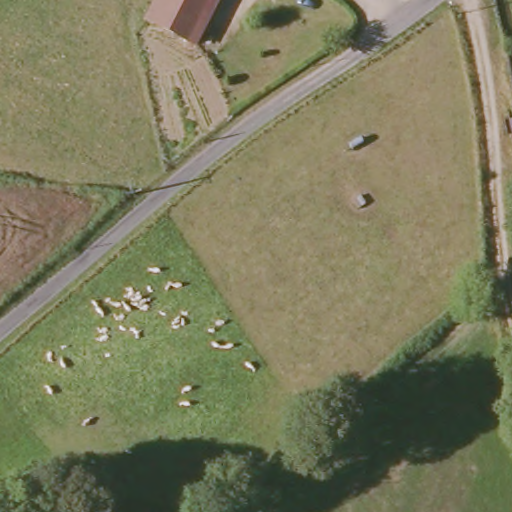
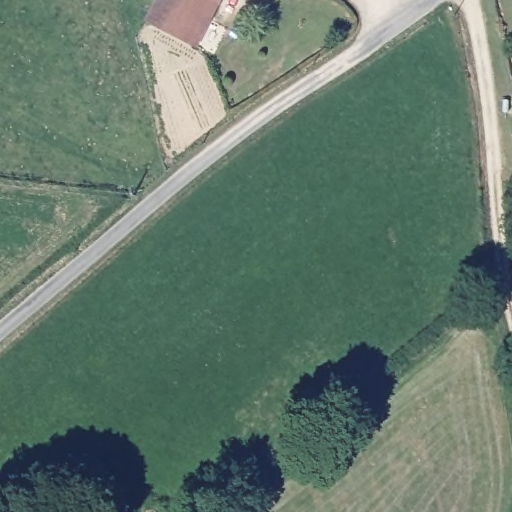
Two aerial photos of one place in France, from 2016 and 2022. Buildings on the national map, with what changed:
unchanged [(148,24),(157,0),(215,0),(206,24),(199,43),(148,24)]

